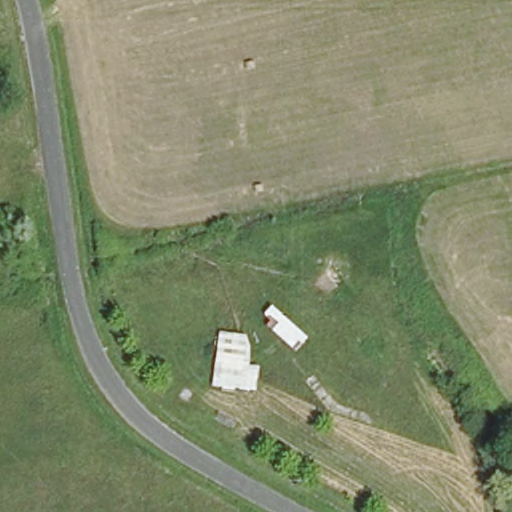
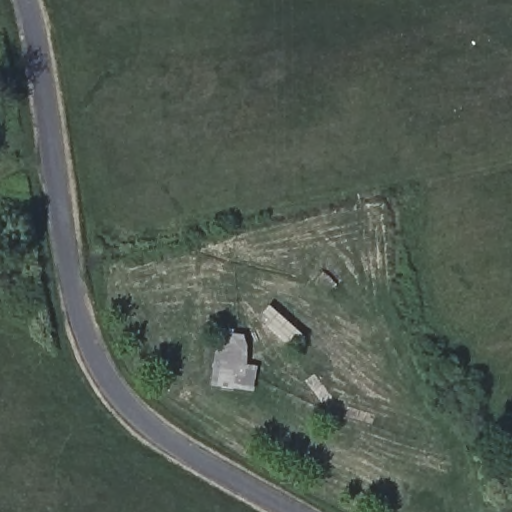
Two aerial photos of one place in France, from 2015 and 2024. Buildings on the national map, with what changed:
unchanged [(247,377),(217,375),(221,332),(248,335),(252,346),(247,377)]

